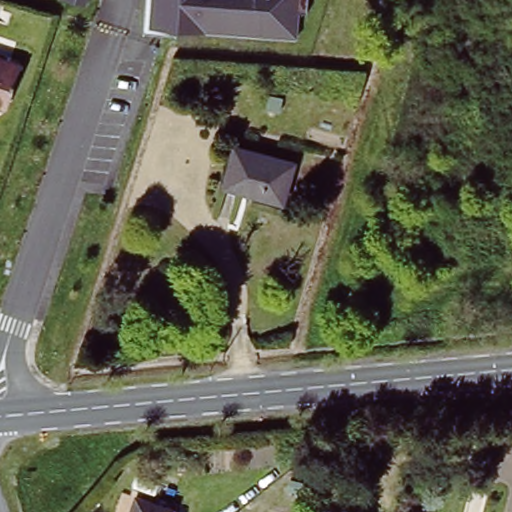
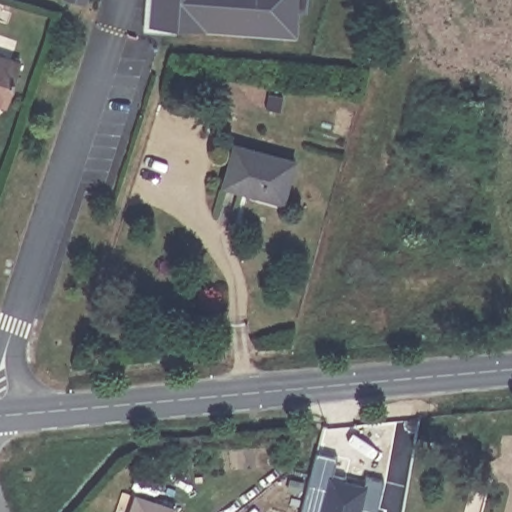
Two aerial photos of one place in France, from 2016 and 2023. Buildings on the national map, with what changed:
new [(69,0),(88,0),(86,5),(69,0)]
unchanged [(298,9),(297,37),(144,29),(145,0),(307,0),(306,10),(298,9)]
unchanged [(7,115),(0,112),(0,64),(22,72),(7,115)]
unchanged [(232,140),(293,158),(280,200),(220,182),(232,140)]
new [(317,452),(339,458),(335,473),(347,477),(347,481),(365,485),(367,478),(385,482),(378,512),(303,512),(317,452)]
unchanged [(140,471),(143,462),(152,465),(150,473),(140,471)]
unchanged [(174,512),(131,512),(139,491),(177,505),(174,512)]

